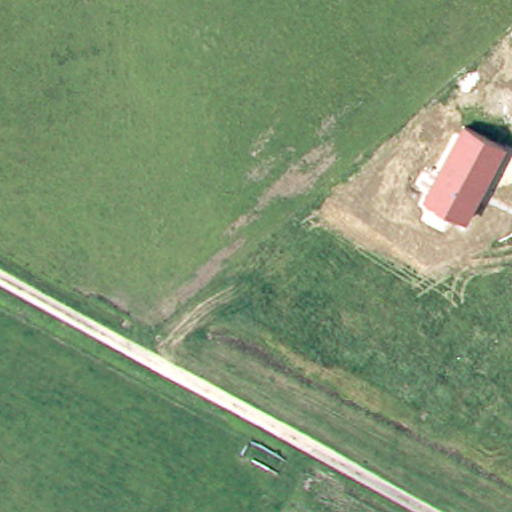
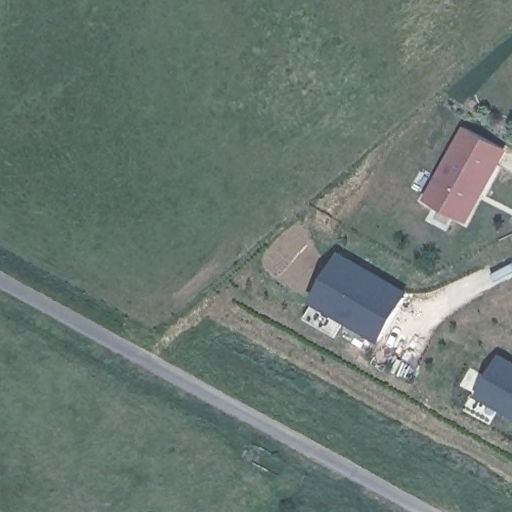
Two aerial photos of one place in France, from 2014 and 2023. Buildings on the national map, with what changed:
unchanged [(506,150),(468,221),(424,197),(463,125),(506,150)]
new [(410,291),(379,342),(310,301),(340,251),(410,291)]
new [(500,351),(512,357),(512,415),(475,395),(500,351)]

